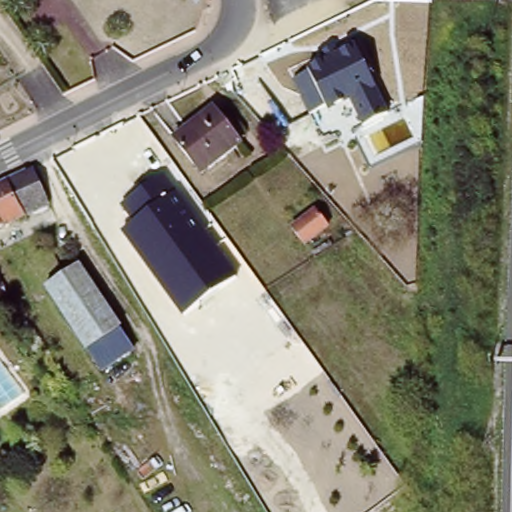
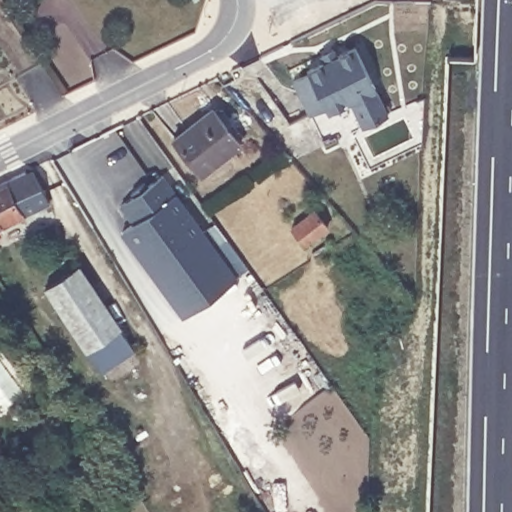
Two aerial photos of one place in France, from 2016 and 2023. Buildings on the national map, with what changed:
unchanged [(309,70),(356,50),(375,87),(389,113),(364,125),(351,99),(329,108),(310,112),(294,78),(309,70)]
unchanged [(238,146),(199,177),(171,142),(210,112),(238,146)]
unchanged [(34,175),(48,203),(0,227),(0,180),(7,176),(22,169),(29,165),(34,175)]
unchanged [(121,232),(133,223),(120,206),(164,175),(239,277),(182,318),(121,232)]
unchanged [(295,221),(317,202),(331,219),(308,236),(295,221)]
unchanged [(122,336),(87,361),(47,297),(81,273),(122,336)]

